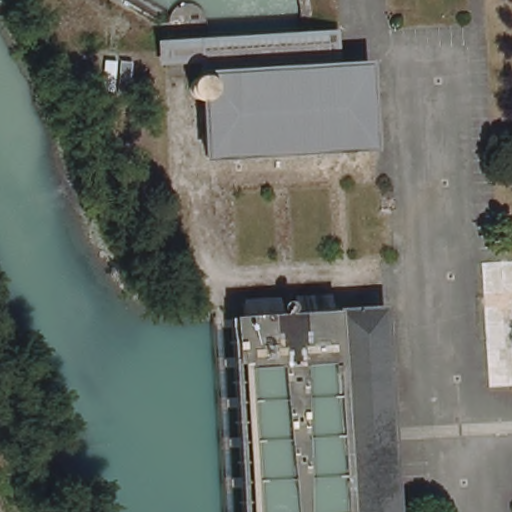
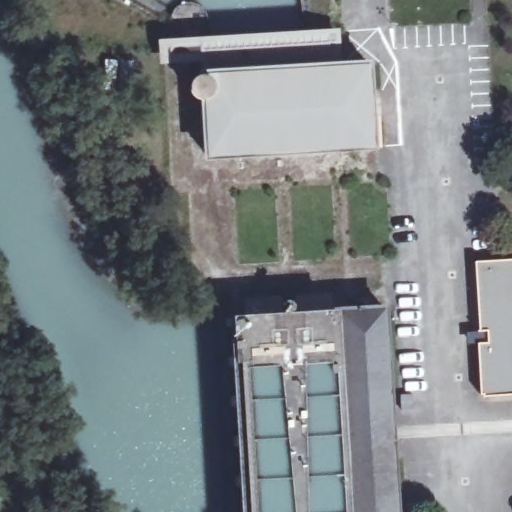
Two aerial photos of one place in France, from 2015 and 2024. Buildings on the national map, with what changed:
unchanged [(330,65),(365,62),(372,145),(210,157),(206,105),(197,96),(197,84),(204,76),(202,48),(329,39),(330,65)]
new [(474,341),(485,340),(485,329),(474,330),(474,328),(475,328),(472,260),(512,259),(512,392),(479,394),(479,392),(477,392),(474,346),(474,341)]
unchanged [(233,321),(256,319),(256,311),(259,310),(260,294),(265,289),(270,289),(274,292),(276,308),(282,308),(282,319),(294,319),(295,306),(305,304),(305,289),(309,284),(317,284),(321,290),(322,303),(332,303),(333,316),(385,312),(399,512),(244,512),(233,321)]

